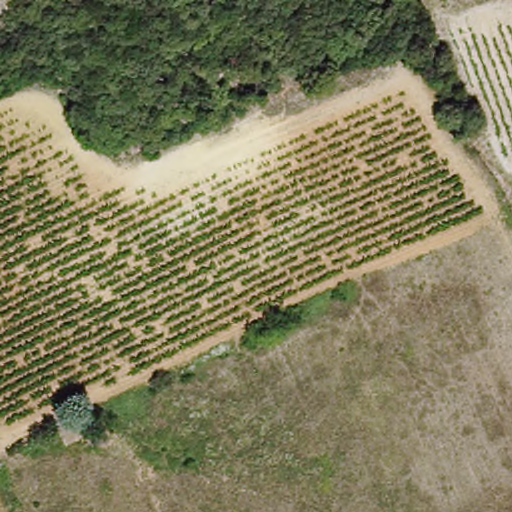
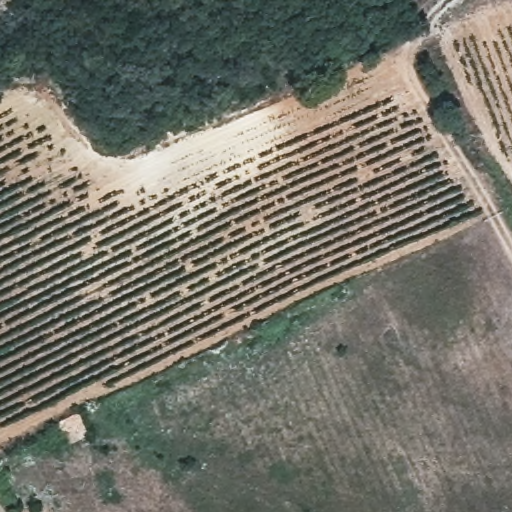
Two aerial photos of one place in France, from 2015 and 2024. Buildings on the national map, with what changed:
unchanged [(65,448),(60,439),(55,427),(76,417),(81,426),(88,437),(65,448)]

